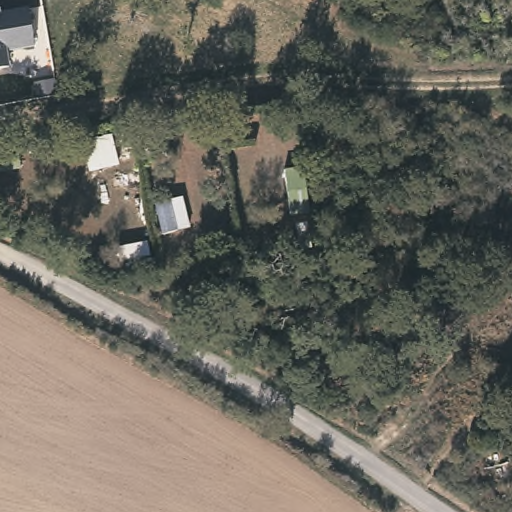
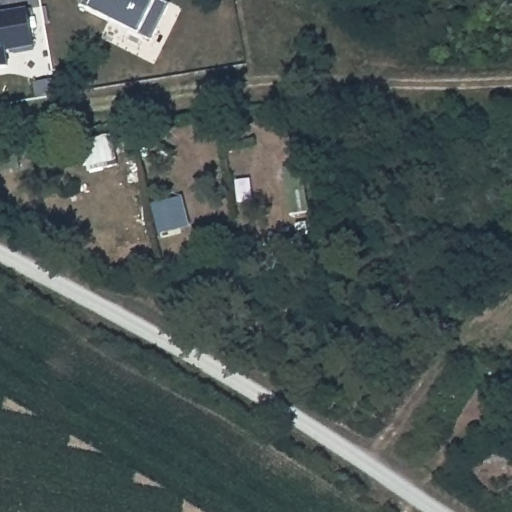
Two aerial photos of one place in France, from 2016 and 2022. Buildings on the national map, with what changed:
new [(153,38),(139,31),(90,7),(80,3),(81,0),(163,0),(171,4),(153,38)]
unchanged [(0,7),(1,12),(29,8),(35,46),(8,51),(10,66),(0,68),(0,7)]
unchanged [(89,168),(80,133),(116,125),(126,159),(89,168)]
unchanged [(309,164),(316,214),(290,215),(283,167),(309,164)]
unchanged [(187,191),(193,228),(163,234),(153,199),(187,191)]
demolished [(400,417),(415,397),(427,408),(414,427),(400,417)]

